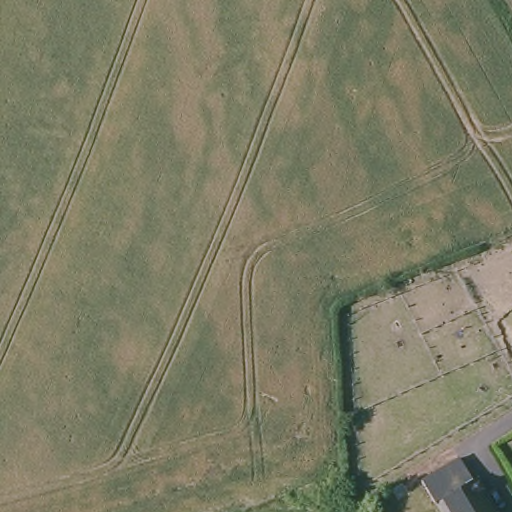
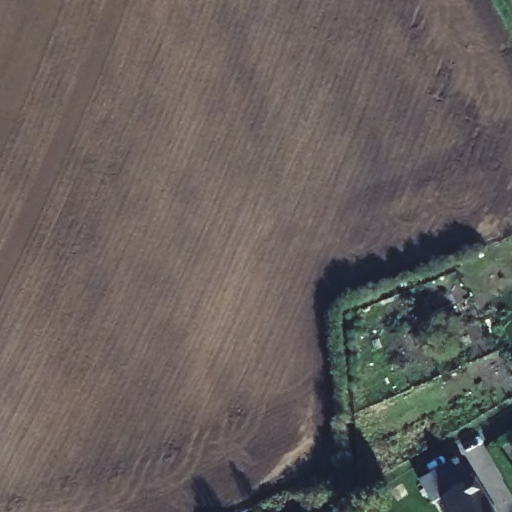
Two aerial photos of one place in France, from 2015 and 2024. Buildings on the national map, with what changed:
unchanged [(480,469),(482,468),(507,512),(462,512),(448,489),(443,492),(430,470),(466,447),(480,469)]

